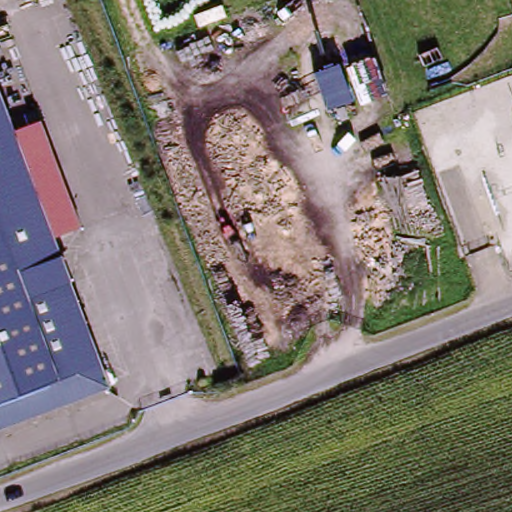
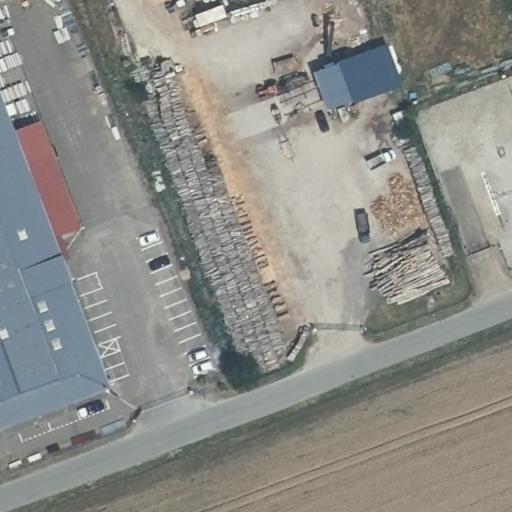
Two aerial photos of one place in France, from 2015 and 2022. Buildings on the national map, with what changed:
new [(338,64),(390,48),(402,86),(352,103),(338,64)]
new [(325,69),(323,66),(332,62),(334,66),(338,64),(352,103),(326,112),(312,74),(325,69)]
unchanged [(50,243),(106,389),(99,392),(0,143),(0,111),(11,141),(50,243)]
unchanged [(41,132),(80,234),(50,243),(11,141),(41,132)]
unchanged [(0,430),(0,143),(99,392),(0,430)]

